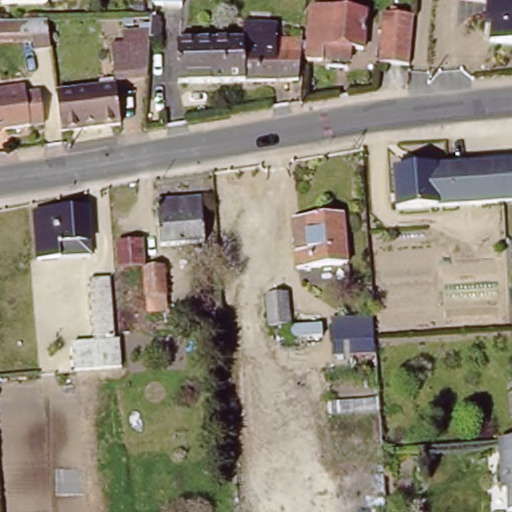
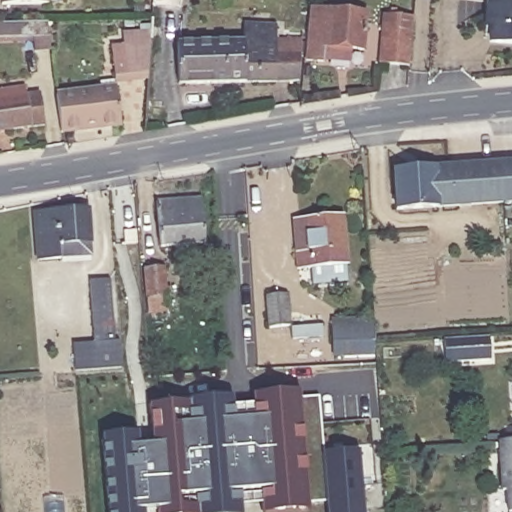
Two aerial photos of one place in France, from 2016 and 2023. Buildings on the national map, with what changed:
unchanged [(182,0),(182,2),(165,2),(151,2),(151,0),(182,0)]
unchanged [(487,0),(512,0),(512,42),(496,41),(491,40),(492,27),(485,26),(485,20),(487,0)]
unchanged [(312,16),(313,5),(371,11),(368,48),(353,47),(353,59),(325,57),(324,60),(309,58),(312,16)]
unchanged [(384,61),(388,11),(418,14),(415,64),(384,61)]
unchanged [(182,42),(241,41),(241,16),(273,16),(273,40),(307,39),(305,79),(182,83),(182,42)]
unchanged [(34,37),(24,37),(0,38),(0,22),(25,22),(47,21),(50,47),(35,48),(34,37)]
unchanged [(118,72),(116,44),(155,42),(153,70),(118,72)]
unchanged [(106,87),(105,81),(119,79),(125,122),(66,130),(61,92),(106,87)]
unchanged [(27,90),(28,99),(44,97),(49,129),(0,135),(0,93),(27,90)]
unchanged [(496,167),(512,166),(512,205),(499,206),(498,189),(496,167)]
unchanged [(390,175),(409,174),(496,167),(498,189),(499,206),(411,212),(392,213),(390,175)]
unchanged [(158,206),(203,202),(205,247),(160,251),(158,206)]
unchanged [(61,257),(38,259),(35,214),(89,209),(91,242),(92,256),(61,257)]
unchanged [(295,219),(343,215),(347,265),(299,270),(295,219)]
unchanged [(146,308),(143,266),(163,265),(165,307),(146,308)]
unchanged [(74,368),(72,338),(94,336),(89,275),(110,273),(115,334),(122,333),(124,364),(74,368)]
unchanged [(265,296),(288,294),(290,325),(268,327),(265,296)]
unchanged [(370,343),(371,353),(362,353),(330,356),(327,320),(368,315),(370,343)]
new [(327,503),(310,503),(311,510),(271,512),(262,512),(262,502),(242,503),(243,512),(159,512),(159,508),(143,510),(143,512),(108,512),(102,436),(139,432),(140,446),(153,444),(150,405),(235,396),(236,403),(254,402),(253,396),(300,392),(300,396),(321,395),(325,453),(359,452),(365,512),(327,512),(327,503)]
unchanged [(507,487),(502,487),(499,437),(512,436),(512,507),(507,507),(507,487)]

